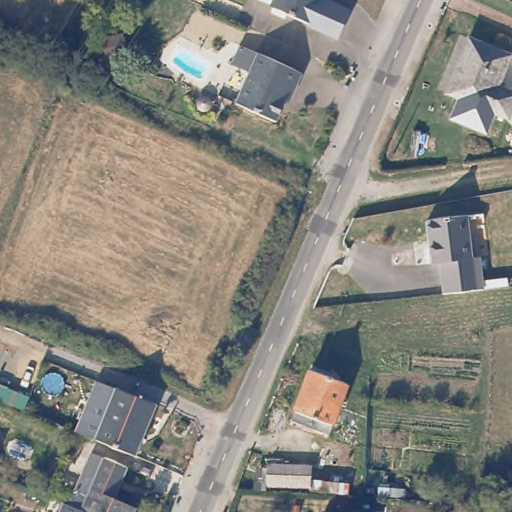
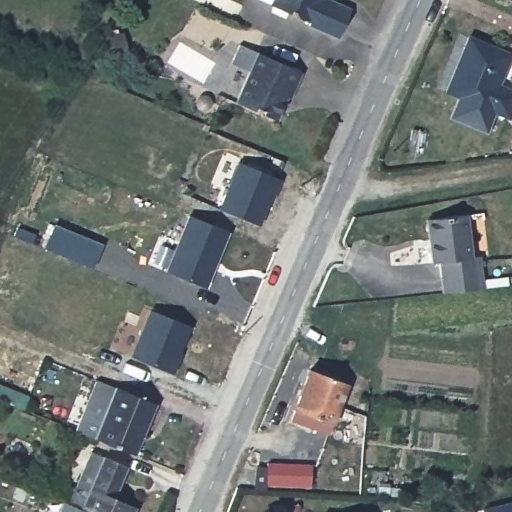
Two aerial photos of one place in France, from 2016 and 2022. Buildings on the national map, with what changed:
unchanged [(335,5),(355,15),(342,44),(312,30),(314,27),(275,9),(276,8),(260,1),(260,0),(328,0),(327,2),(335,5)]
unchanged [(512,58),(512,67),(502,90),(512,93),(512,122),(450,97),(473,41),(512,58)]
unchanged [(277,120),(237,101),(260,52),(302,72),(296,87),(292,87),(287,97),(277,120)]
new [(240,163),(278,179),(261,222),(222,206),(240,163)]
unchanged [(439,260),(431,261),(426,219),(467,215),(471,256),(439,260)]
new [(191,218),(230,234),(217,265),(214,263),(212,268),(214,272),(208,286),(169,271),(191,218)]
unchanged [(483,289),(442,293),(439,260),(471,256),(479,255),(482,280),(506,277),(507,287),(483,289)]
new [(149,311),(188,327),(170,372),(131,356),(149,311)]
unchanged [(348,384),(328,433),(290,418),(310,368),(348,384)]
unchanged [(161,406),(140,456),(94,437),(115,387),(161,406)]
unchanged [(74,489),(88,495),(104,457),(128,467),(113,500),(135,509),(133,512),(87,512),(80,509),(68,503),(74,489)]
unchanged [(312,463),(312,486),(267,484),(267,462),(312,463)]
unchanged [(59,482),(74,489),(68,503),(80,509),(79,512),(61,512),(63,507),(51,502),(59,482)]
new [(512,501),(512,512),(483,512),(482,508),(512,501)]
unchanged [(79,512),(80,509),(87,512),(79,512)]

